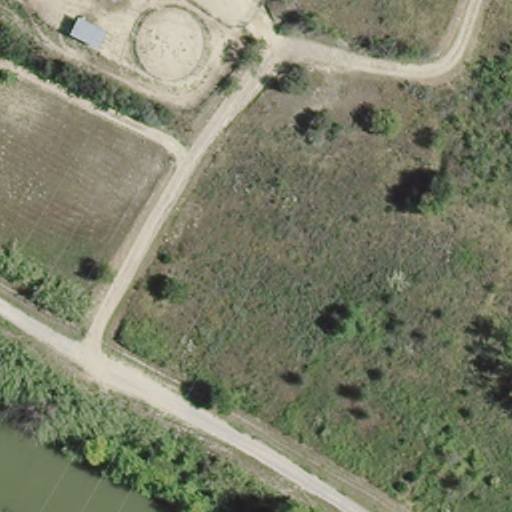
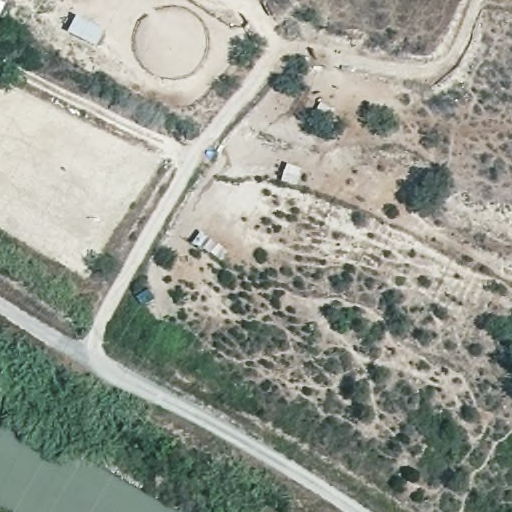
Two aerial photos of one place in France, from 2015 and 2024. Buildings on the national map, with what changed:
[]

